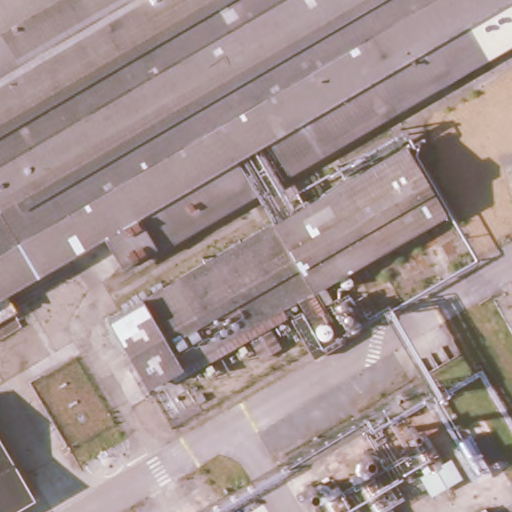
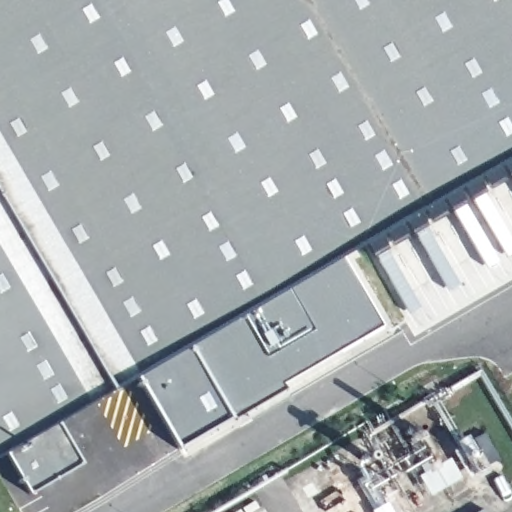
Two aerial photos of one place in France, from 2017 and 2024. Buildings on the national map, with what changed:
demolished [(512,1),(366,85),(103,237),(0,297),(0,0),(512,0),(512,1)]
new [(379,325),(177,447),(133,375),(53,423),(79,463),(25,495),(0,453),(0,0),(512,0),(512,156),(341,255),(379,325)]
demolished [(366,85),(512,1),(512,39),(384,112),(366,85)]
demolished [(119,265),(103,237),(366,85),(384,112),(119,265)]
demolished [(445,207),(326,277),(333,290),(319,299),(342,340),(311,359),(286,315),(301,307),(294,295),(151,376),(112,310),(405,141),(445,207)]
demolished [(31,487),(0,505),(0,432),(31,487)]

